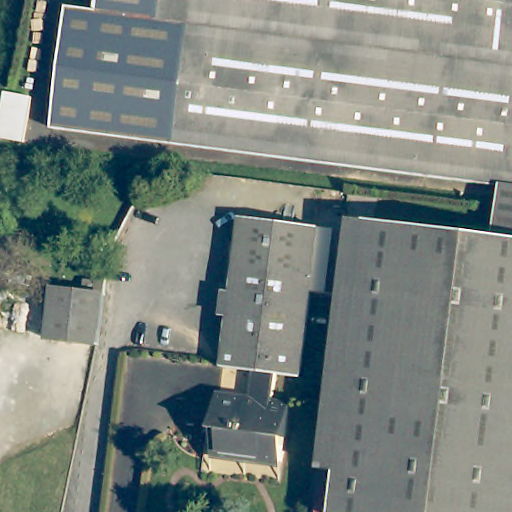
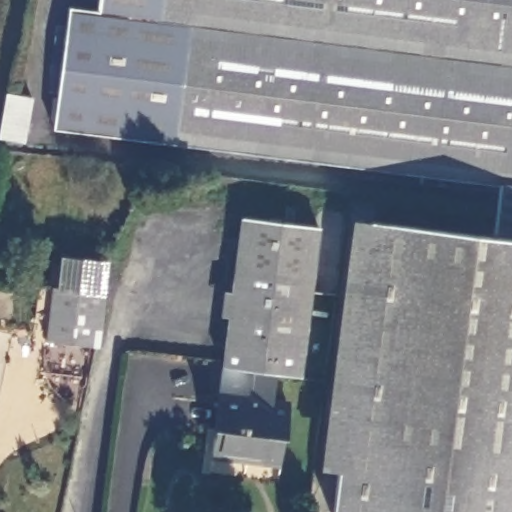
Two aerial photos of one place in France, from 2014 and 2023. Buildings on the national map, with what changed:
unchanged [(249,153),(60,128),(73,10),(100,14),(102,0),(512,0),(512,214),(497,212),(501,184),(249,153)]
unchanged [(372,217),(494,232),(497,212),(512,214),(512,512),(334,512),(372,217)]
unchanged [(312,225),(306,275),(230,266),(236,216),(312,225)]
unchanged [(251,368),(219,364),(219,361),(230,266),(306,275),(295,373),(271,370),(251,368)]
unchanged [(103,292),(97,342),(95,344),(46,339),(51,285),(103,292)]
unchanged [(271,370),(268,401),(286,404),(278,462),(208,453),(211,426),(214,395),(248,398),(251,368),(271,370)]

